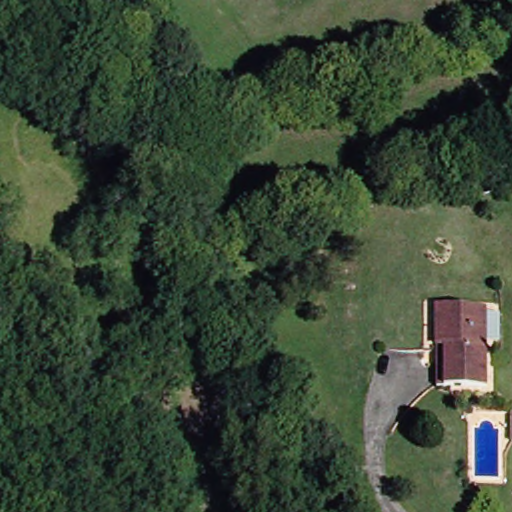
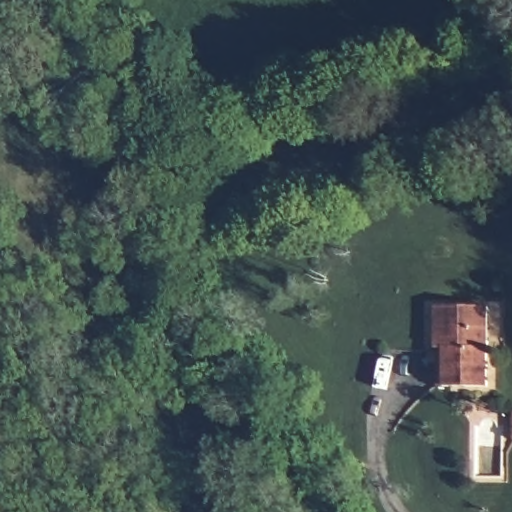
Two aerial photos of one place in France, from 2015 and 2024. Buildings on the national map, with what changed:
unchanged [(482,386),(436,386),(435,346),(433,304),(444,304),(479,304),(482,386)]

